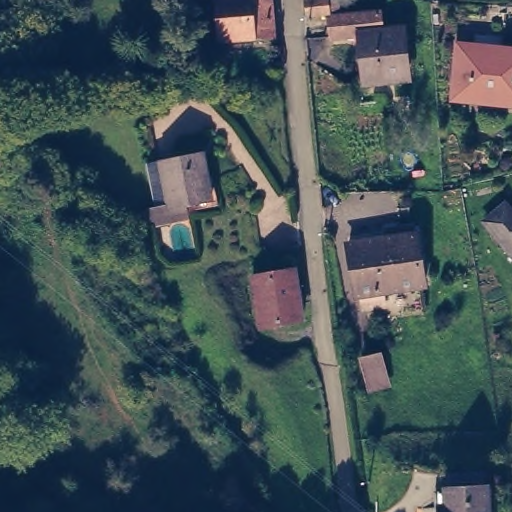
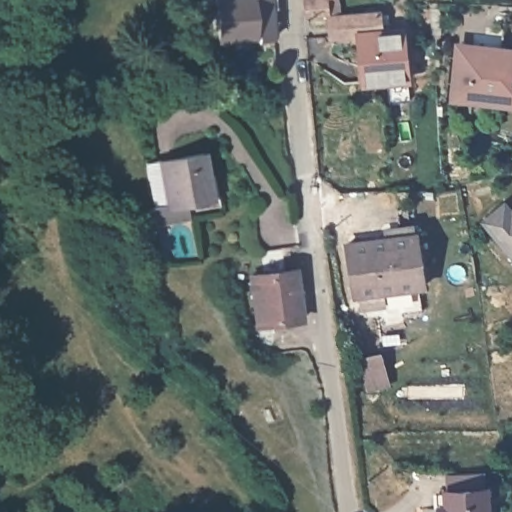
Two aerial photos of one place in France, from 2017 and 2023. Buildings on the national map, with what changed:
unchanged [(275,35),(220,39),(217,0),(273,0),(275,35)]
unchanged [(306,0),(327,0),(329,11),(307,14),(306,0)]
unchanged [(329,17),(380,10),(382,30),(360,33),(331,36),(329,17)]
unchanged [(382,30),(402,27),(407,77),(365,83),(360,33),(382,30)]
unchanged [(464,90),(467,43),(505,46),(506,44),(512,44),(512,94),(464,90)]
unchanged [(208,197),(167,205),(158,158),(200,150),(208,197)]
unchanged [(489,218),(508,202),(512,208),(512,248),(489,218)]
unchanged [(425,284),(384,291),(387,305),(372,307),(370,294),(357,296),(349,240),(389,233),(388,226),(415,221),(425,284)]
unchanged [(278,250),(282,267),(294,265),(304,315),(262,324),(253,272),(266,270),(263,253),(270,251),(278,250)]
unchanged [(388,390),(374,392),(367,363),(382,360),(388,390)]
unchanged [(441,512),(440,501),(449,500),(447,485),(486,482),(488,512),(441,512)]

